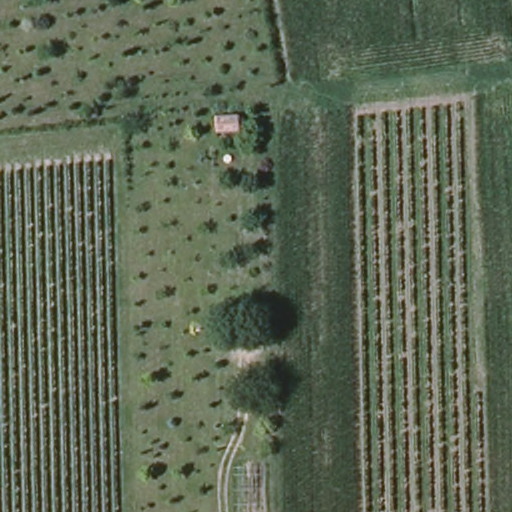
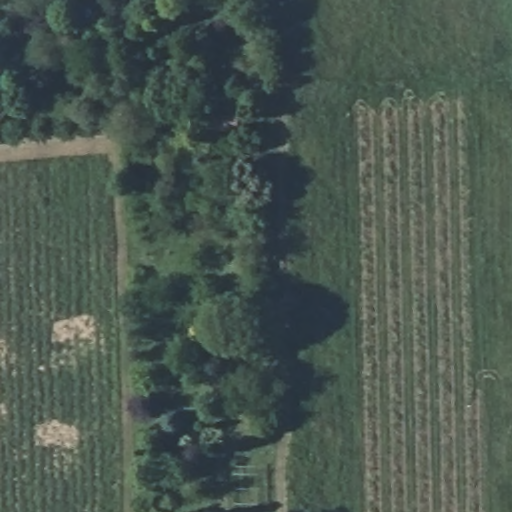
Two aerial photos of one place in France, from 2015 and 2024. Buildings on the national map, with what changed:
unchanged [(240,135),(215,135),(215,110),(241,110),(240,135)]

